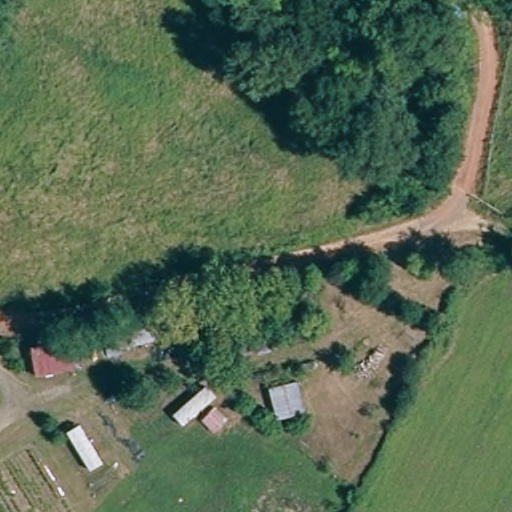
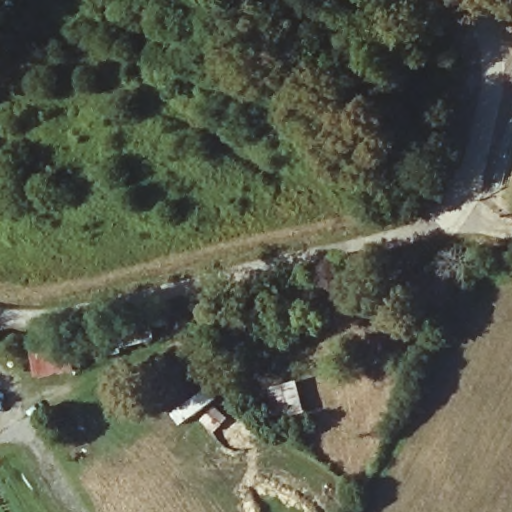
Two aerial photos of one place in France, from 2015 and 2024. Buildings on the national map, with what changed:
unchanged [(67,339),(103,328),(153,312),(160,341),(105,359),(104,349),(76,359),(76,372),(37,379),(30,345),(67,339)]

